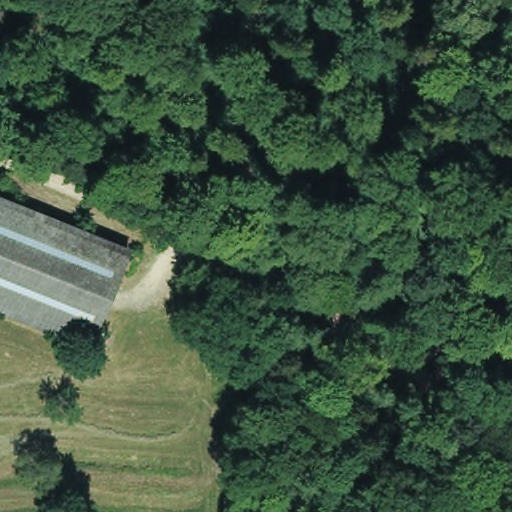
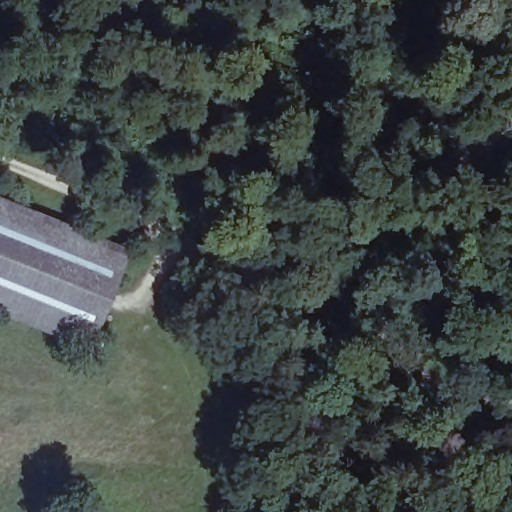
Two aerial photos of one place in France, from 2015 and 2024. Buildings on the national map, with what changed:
unchanged [(88,340),(86,343),(0,309),(0,194),(126,245),(93,328),(103,332),(97,344),(88,340)]

